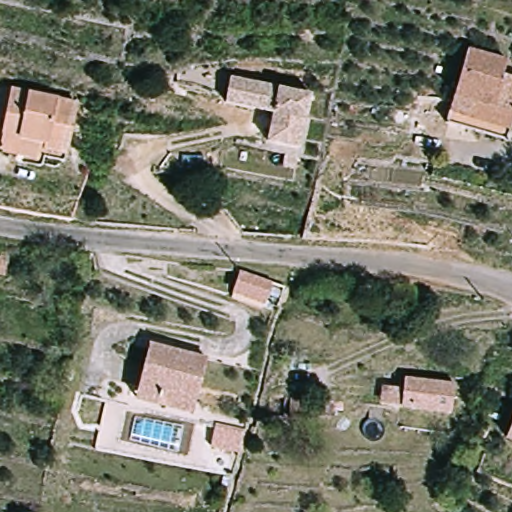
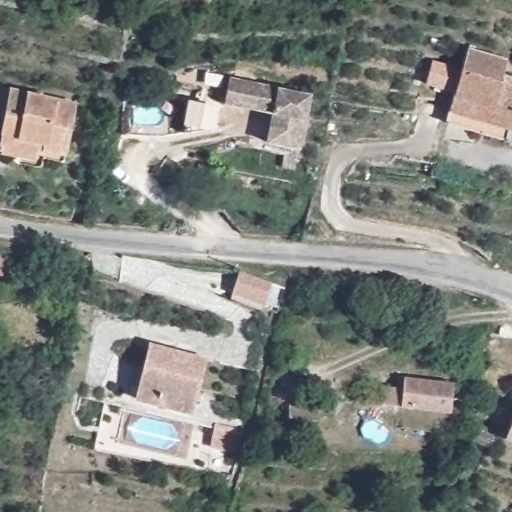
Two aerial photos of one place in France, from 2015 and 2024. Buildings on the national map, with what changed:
unchanged [(450,119),(475,26),(512,35),(512,50),(512,137),(481,128),(450,119)]
unchanged [(265,146),(272,115),(224,103),(230,79),(311,98),(298,153),(265,146)]
unchanged [(0,145),(13,88),(75,103),(61,160),(0,145)]
new [(215,106),(210,127),(183,131),(190,101),(215,106)]
unchanged [(2,273),(0,273),(0,257),(0,258),(5,258),(2,273)]
unchanged [(273,312),(225,301),(232,275),(280,287),(273,312)]
unchanged [(137,400),(138,391),(146,344),(202,354),(196,396),(194,410),(137,400)]
unchanged [(383,387),(401,388),(401,379),(453,382),(451,410),(401,407),(383,406),(383,387)]
unchanged [(316,401),(315,426),(285,424),(285,399),(316,401)]
unchanged [(512,416),(512,441),(505,439),(512,416)]
unchanged [(241,452),(212,447),(215,429),(245,434),(241,452)]

